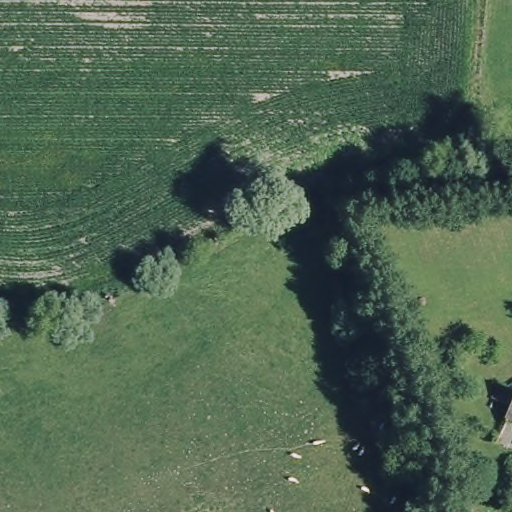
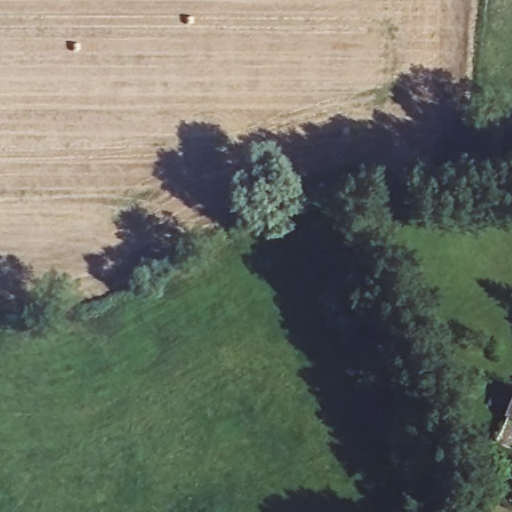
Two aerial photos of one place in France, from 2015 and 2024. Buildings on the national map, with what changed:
unchanged [(508,420),(512,407),(512,421),(508,420)]

